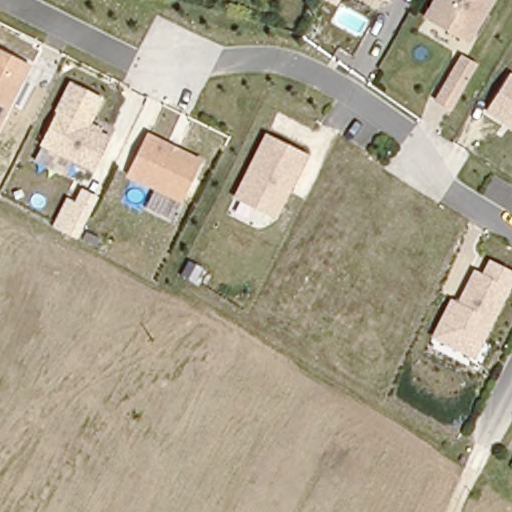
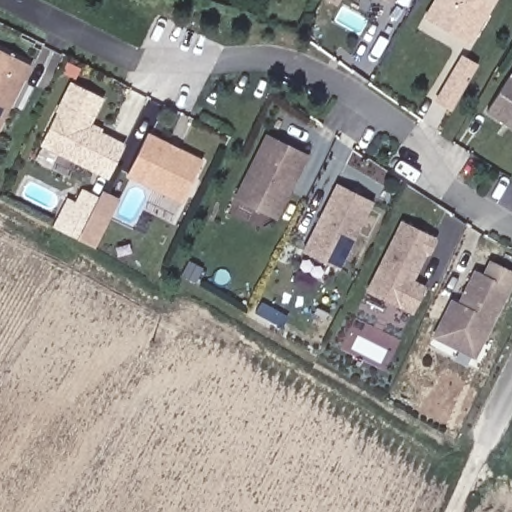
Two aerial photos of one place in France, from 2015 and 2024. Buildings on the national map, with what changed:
unchanged [(353,0),(381,0),(375,12),(353,0)]
unchanged [(382,0),(393,0),(391,5),(382,0)]
unchanged [(424,21),(435,0),(496,0),(473,47),(424,21)]
unchanged [(0,48),(34,66),(0,134),(0,48)]
unchanged [(454,110),(434,101),(461,53),(482,66),(454,110)]
unchanged [(487,112),(512,73),(512,128),(487,112)]
unchanged [(99,172),(39,144),(68,81),(105,97),(93,122),(104,127),(103,132),(113,136),(99,172)]
unchanged [(183,202),(130,177),(149,133),(205,161),(183,202)]
unchanged [(277,220),(234,199),(266,134),(309,155),(277,220)]
new [(340,271),(303,252),(337,182),(374,201),(340,271)]
unchanged [(80,241),(50,227),(67,196),(77,201),(84,189),(101,197),(80,241)]
new [(430,257),(427,256),(416,280),(428,286),(413,315),(366,290),(402,220),(438,237),(430,257)]
unchanged [(474,361),(429,339),(449,298),(458,303),(473,269),(482,273),(488,259),(512,271),(512,287),(474,361)]

